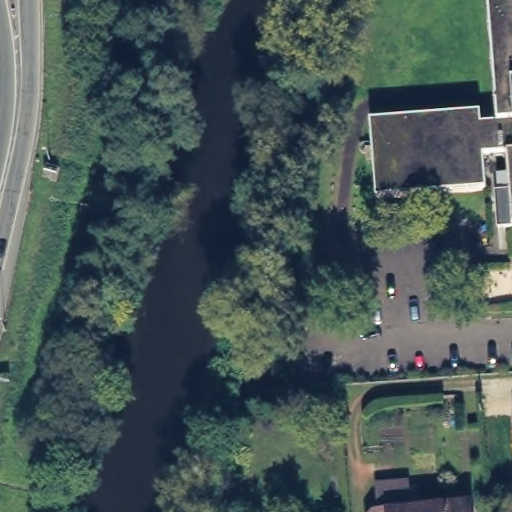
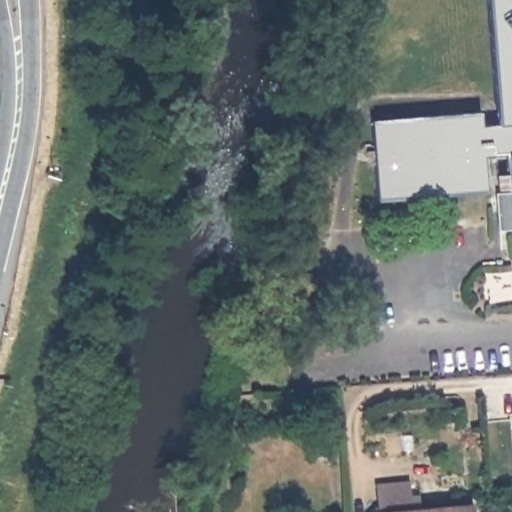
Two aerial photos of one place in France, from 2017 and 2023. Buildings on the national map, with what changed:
unchanged [(495,192),(511,190),(507,152),(482,153),(486,187),(376,195),(370,118),(480,109),(481,121),(498,120),(488,0),(512,0),(512,226),(498,227),(495,192)]
unchanged [(413,483),(414,496),(422,495),(424,509),(471,504),(471,512),(383,512),(381,486),(413,483)]

